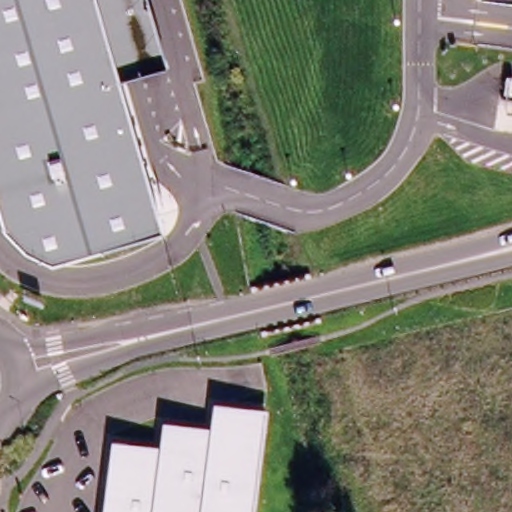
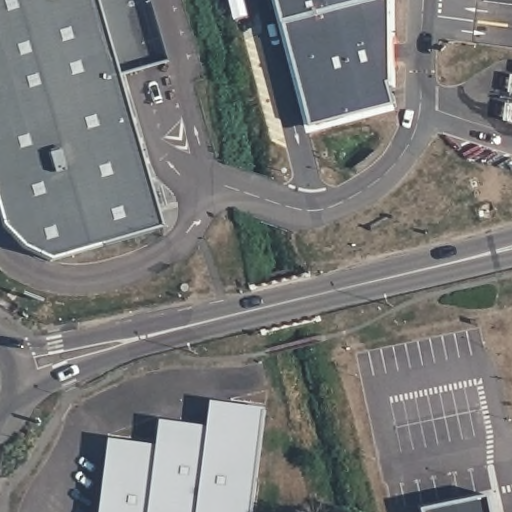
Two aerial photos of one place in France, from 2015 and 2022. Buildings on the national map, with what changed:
unchanged [(51,261),(23,248),(0,225),(0,224),(0,0),(145,0),(163,64),(117,77),(160,229),(51,261)]
new [(398,113),(308,136),(273,0),(395,0),(395,89),(391,90),(396,105),(398,113)]
unchanged [(104,493),(110,439),(157,445),(160,420),(207,426),(210,401),(261,407),(254,465),(248,512),(102,512),(104,495),(104,493)]
new [(496,512),(434,512),(433,509),(492,497),(496,512)]

